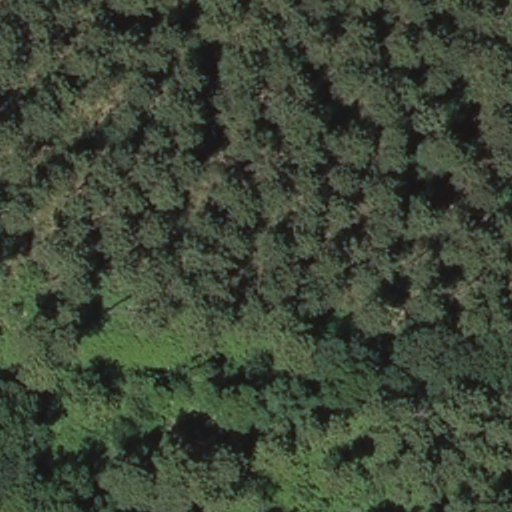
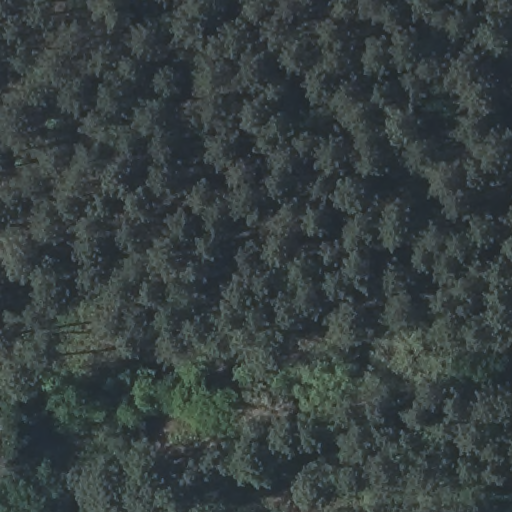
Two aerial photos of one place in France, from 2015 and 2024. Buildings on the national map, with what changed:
[]

